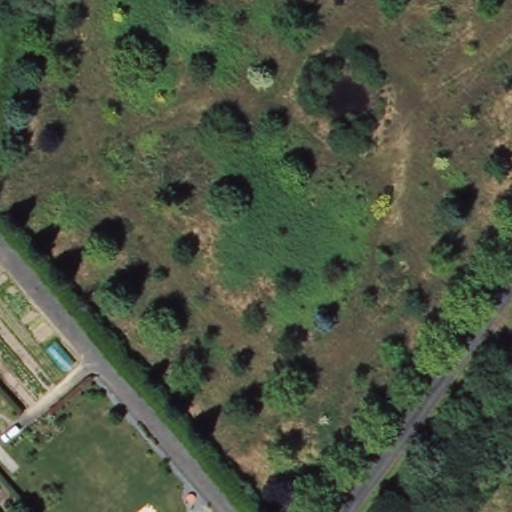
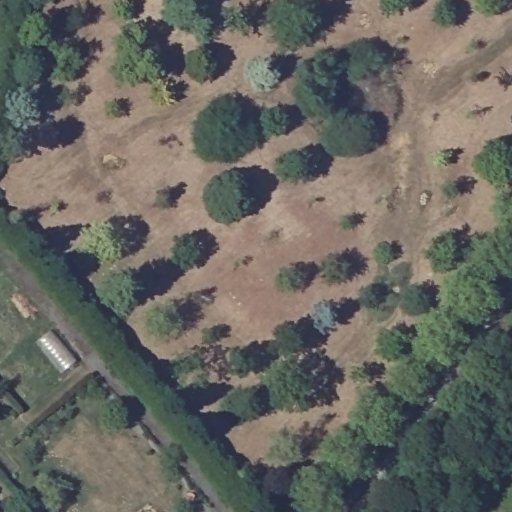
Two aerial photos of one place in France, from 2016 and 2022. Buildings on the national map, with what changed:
unchanged [(0,512),(0,508),(4,512),(0,512)]

